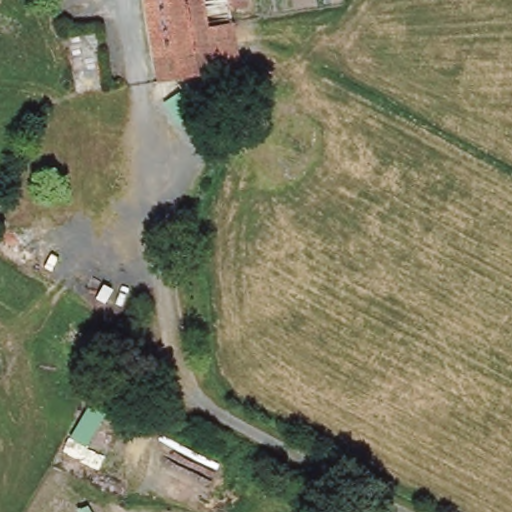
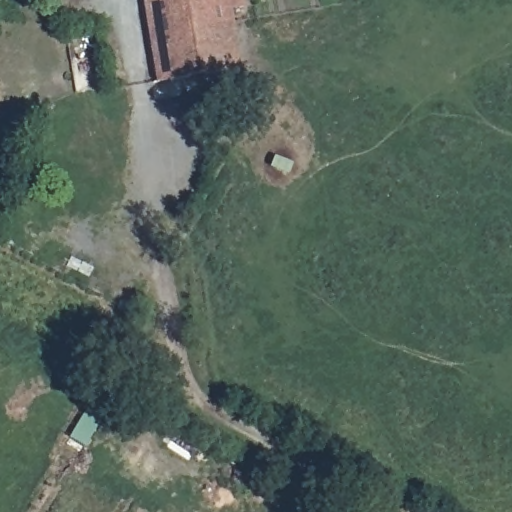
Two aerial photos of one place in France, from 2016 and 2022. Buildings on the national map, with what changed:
unchanged [(175,33),(203,29),(210,74),(154,81),(144,0),(171,0),(175,33)]
unchanged [(246,6),(230,9),(236,70),(210,74),(203,29),(175,33),(171,0),(246,0),(246,6)]

